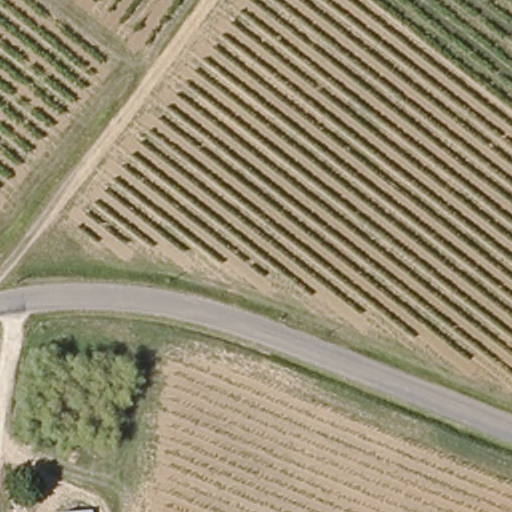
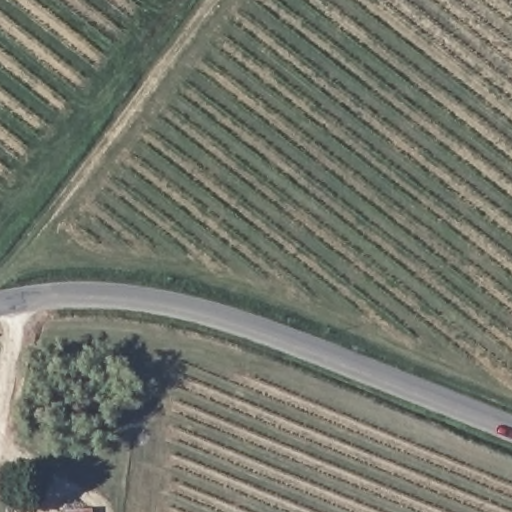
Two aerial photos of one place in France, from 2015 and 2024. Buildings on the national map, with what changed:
unchanged [(63,508),(90,506),(90,512),(63,512),(63,508)]

